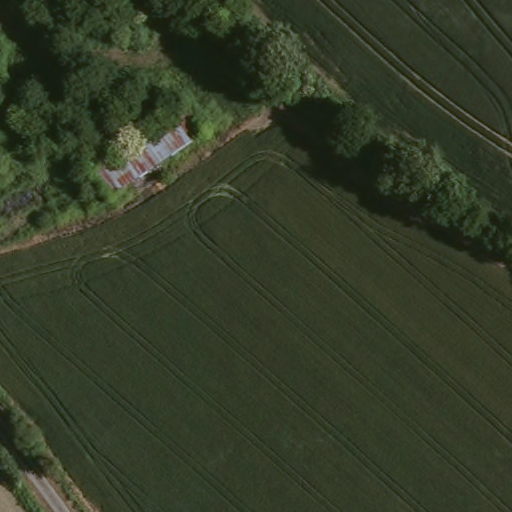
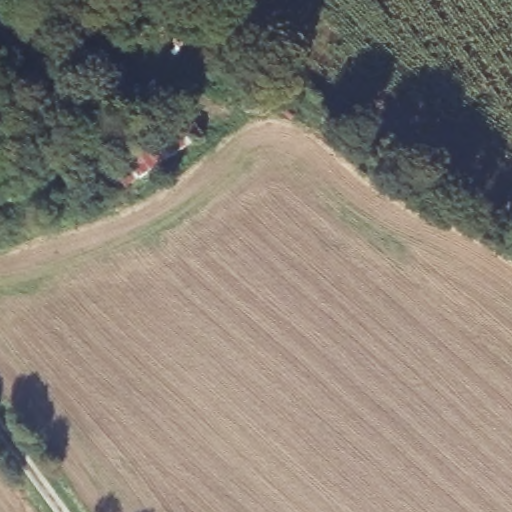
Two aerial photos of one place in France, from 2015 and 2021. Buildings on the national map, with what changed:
unchanged [(204,134),(115,200),(91,173),(182,108),(204,134)]

